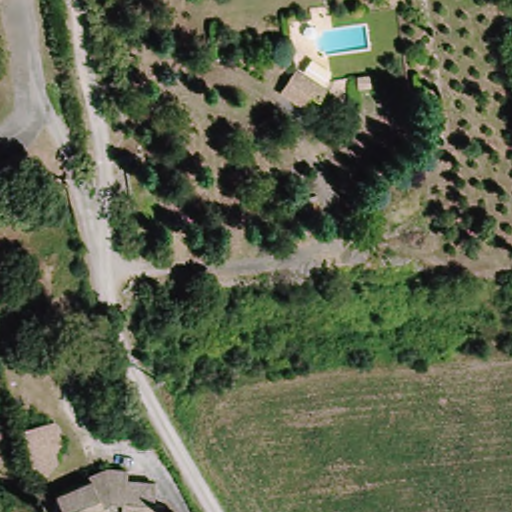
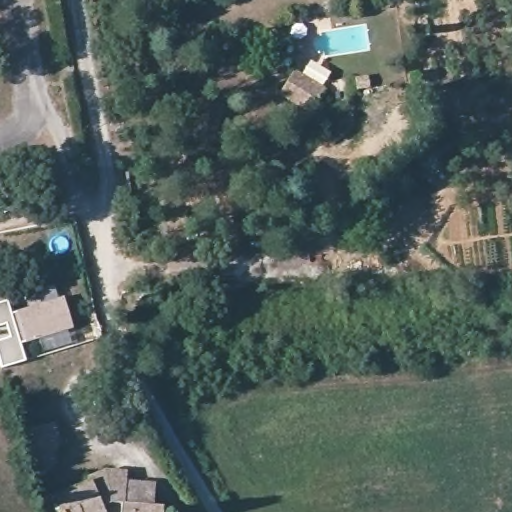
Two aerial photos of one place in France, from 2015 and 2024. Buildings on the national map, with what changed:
unchanged [(323,105),(315,100),(308,110),(282,91),(296,70),(330,95),(323,105)]
unchanged [(358,79),(368,78),(369,88),(359,89),(358,79)]
new [(6,300),(9,308),(61,292),(71,326),(19,341),(24,357),(0,364),(0,302),(6,300)]
unchanged [(66,465),(33,474),(23,436),(56,427),(66,465)]
unchanged [(56,497),(90,482),(89,478),(105,471),(107,471),(124,472),(128,475),(125,505),(163,507),(163,512),(62,512),(56,497)]

